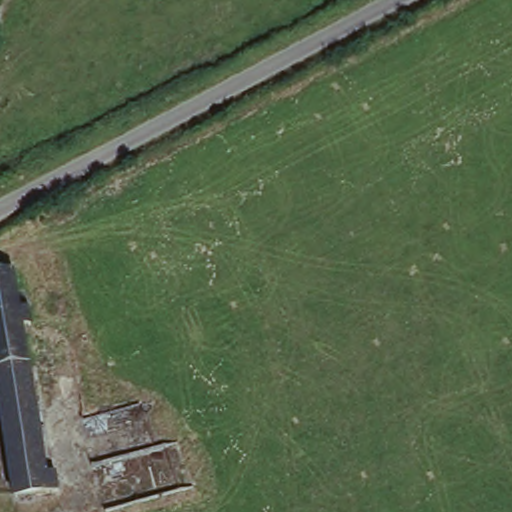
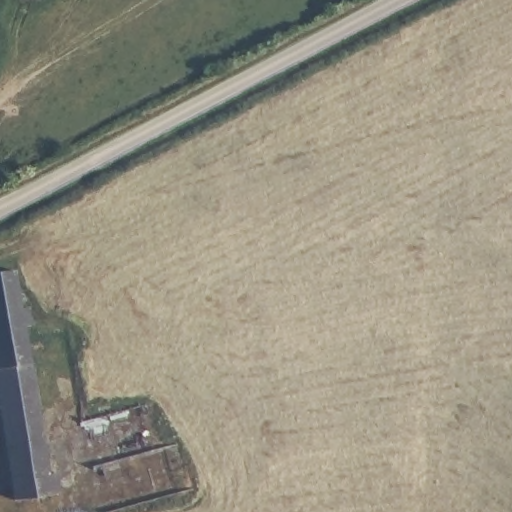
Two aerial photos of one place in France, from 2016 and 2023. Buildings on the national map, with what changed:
unchanged [(9,270),(16,307),(26,310),(29,327),(21,330),(33,392),(40,391),(46,418),(38,420),(52,483),(55,482),(59,495),(22,503),(8,506),(0,456),(0,273),(9,270)]

